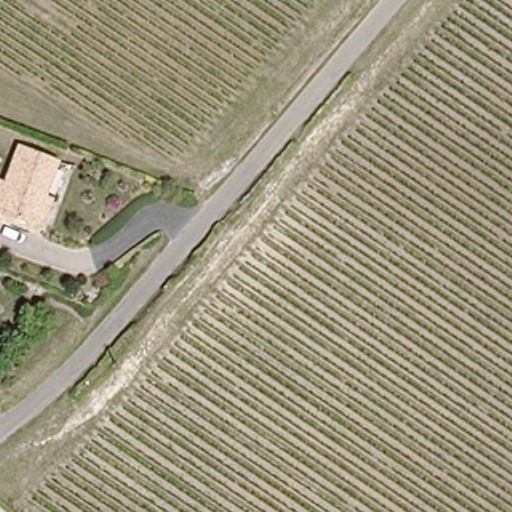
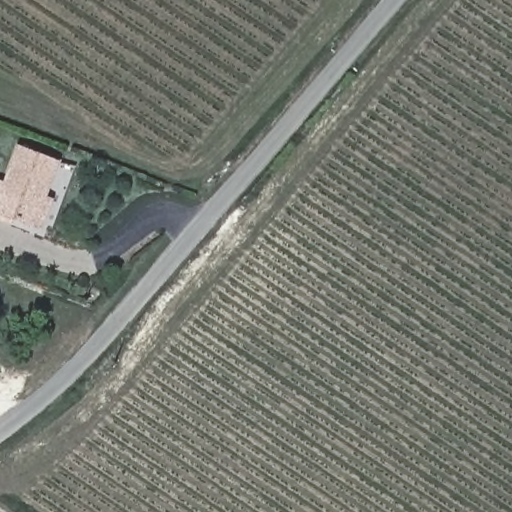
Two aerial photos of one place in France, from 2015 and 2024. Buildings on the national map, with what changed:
unchanged [(31,224),(0,212),(0,181),(5,184),(20,149),(56,162),(54,169),(42,197),(51,201),(40,228),(31,224)]

